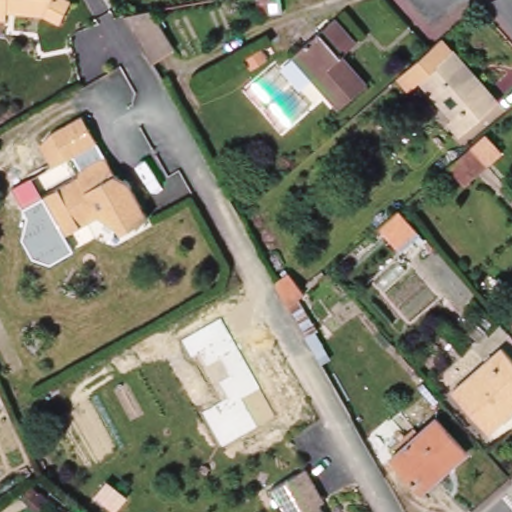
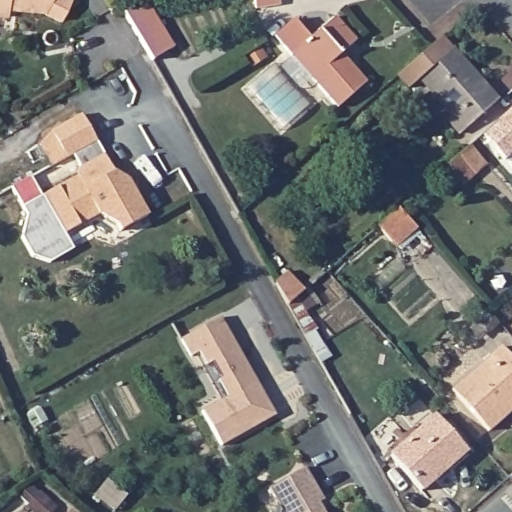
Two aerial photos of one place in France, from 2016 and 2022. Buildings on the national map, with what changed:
unchanged [(45,13),(6,10),(6,18),(0,17),(0,0),(70,0),(60,20),(45,13)]
unchanged [(174,53),(152,66),(151,64),(146,55),(124,18),(150,14),(174,53)]
unchanged [(338,108),(291,56),(335,17),(356,41),(341,54),(367,82),(338,108)]
unchanged [(498,101),(460,134),(448,122),(453,117),(419,79),(409,88),(398,75),(400,72),(429,47),(440,37),(498,101)]
unchanged [(39,142),(50,131),(81,114),(96,141),(65,157),(51,165),(39,142)]
unchanged [(448,165),(453,161),(470,146),(485,132),(502,152),(487,165),(464,185),(448,165)]
unchanged [(146,216),(119,231),(115,225),(98,214),(62,233),(41,195),(77,175),(79,167),(103,154),(113,172),(126,180),(146,216)]
unchanged [(62,233),(64,232),(74,249),(50,263),(33,258),(21,237),(28,216),(13,187),(32,176),(41,195),(62,233)]
unchanged [(397,247),(379,226),(399,209),(417,230),(397,247)]
unchanged [(308,288),(292,302),(279,280),(291,270),(308,288)]
new [(259,426),(224,446),(204,411),(223,400),(198,354),(193,357),(183,339),(222,317),(261,387),(277,415),(259,426)]
unchanged [(512,358),(512,411),(489,432),(452,390),(502,347),(512,358)]
unchanged [(467,451),(421,491),(391,456),(436,416),(467,451)]
unchanged [(270,493),(306,473),(324,506),(320,508),(322,512),(281,512),(270,493)]

